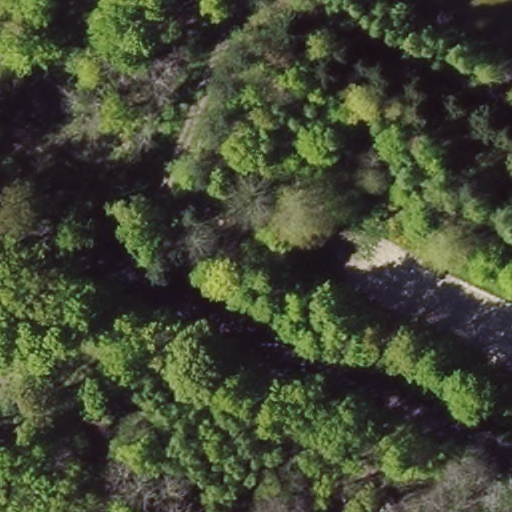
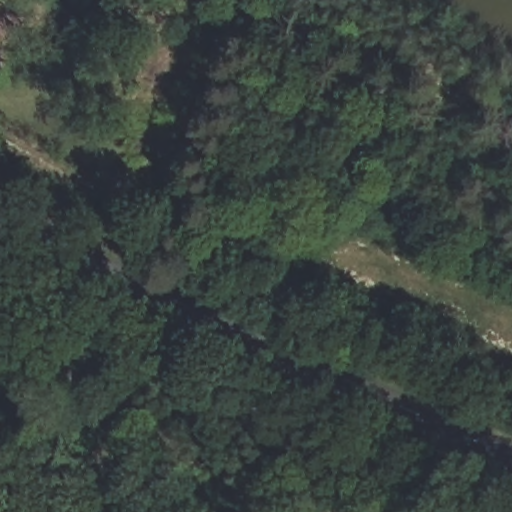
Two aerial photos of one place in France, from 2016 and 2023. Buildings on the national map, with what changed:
[]

